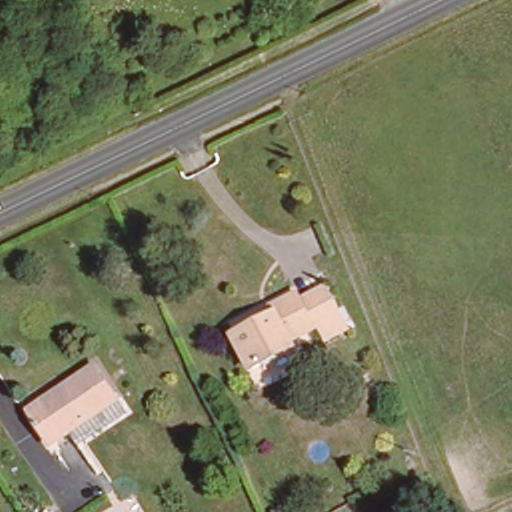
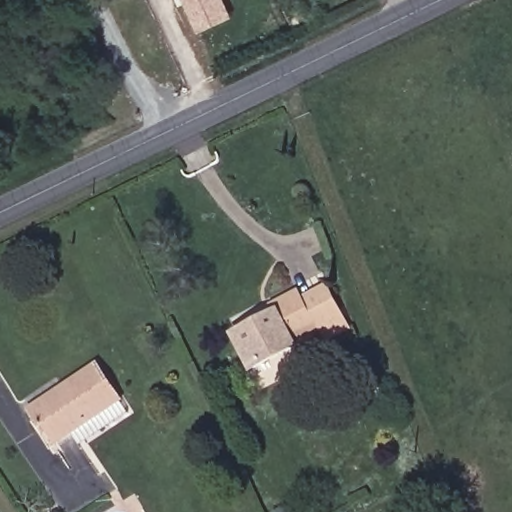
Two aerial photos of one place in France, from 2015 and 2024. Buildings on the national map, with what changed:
new [(234,18),(199,34),(184,0),(226,0),(234,18)]
unchanged [(232,334),(273,316),(271,308),(295,297),(296,301),(319,291),(340,336),(316,344),(311,331),(287,341),(291,351),(251,370),(232,334)]
unchanged [(75,444),(66,431),(50,441),(27,406),(94,362),(117,398),(95,412),(102,427),(75,444)]

